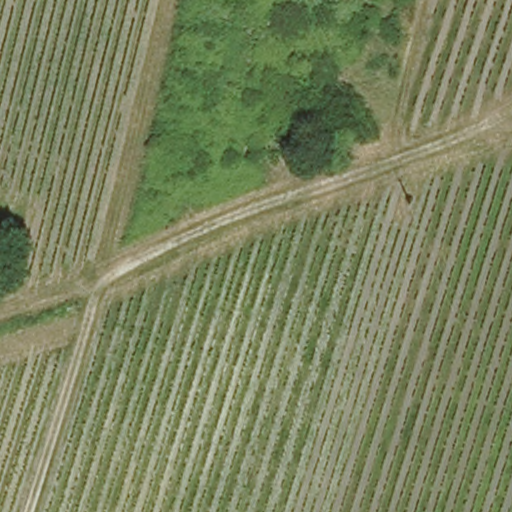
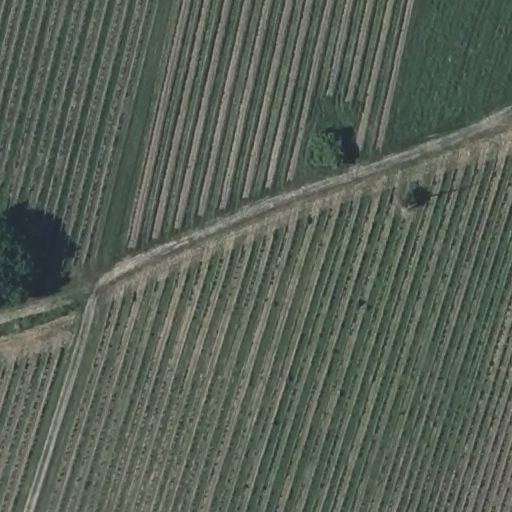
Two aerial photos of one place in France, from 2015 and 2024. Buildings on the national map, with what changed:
unchanged [(299,171),(296,145),(324,145),(326,168),(315,170),(299,171)]

